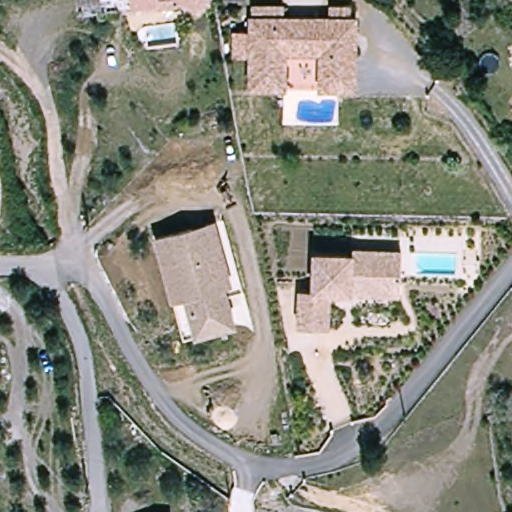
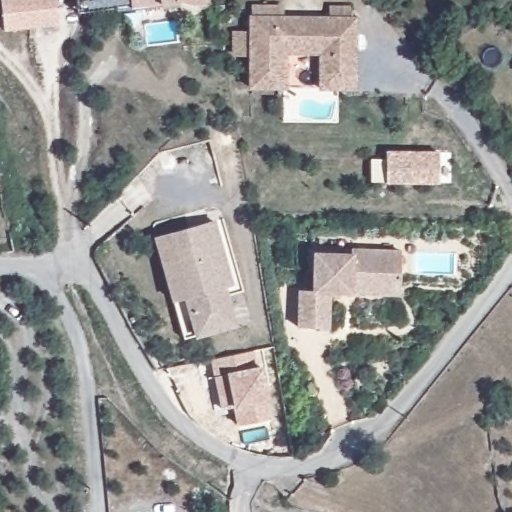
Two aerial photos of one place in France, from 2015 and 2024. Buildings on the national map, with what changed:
new [(2,0),(57,0),(60,26),(5,32),(2,0)]
unchanged [(130,15),(124,16),(90,21),(86,0),(128,0),(130,15)]
unchanged [(217,1),(201,4),(185,1),(138,8),(137,0),(217,0),(217,1)]
unchanged [(358,16),(358,89),(320,88),(319,55),(288,55),(289,89),(248,90),(249,14),(358,16)]
new [(438,151),(438,185),(385,184),(386,150),(438,151)]
unchanged [(190,341),(160,240),(218,224),(240,296),(232,298),(240,327),(190,341)]
unchanged [(403,282),(402,294),(353,292),(331,292),(331,328),(301,327),(301,290),(315,290),(316,253),(353,254),(353,249),(403,250),(403,282)]
new [(211,359),(253,351),(257,366),(261,366),(273,418),(237,426),(233,406),(220,408),(211,359)]

